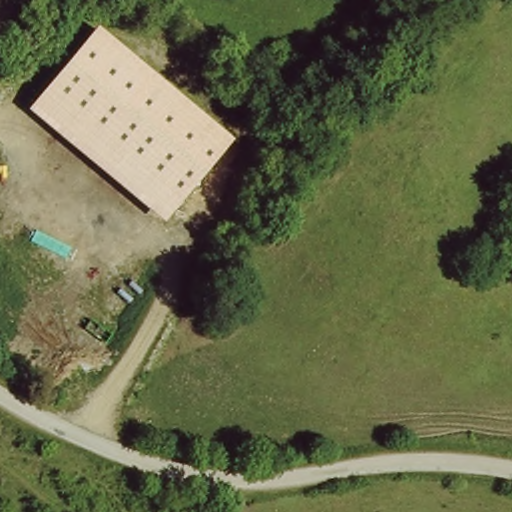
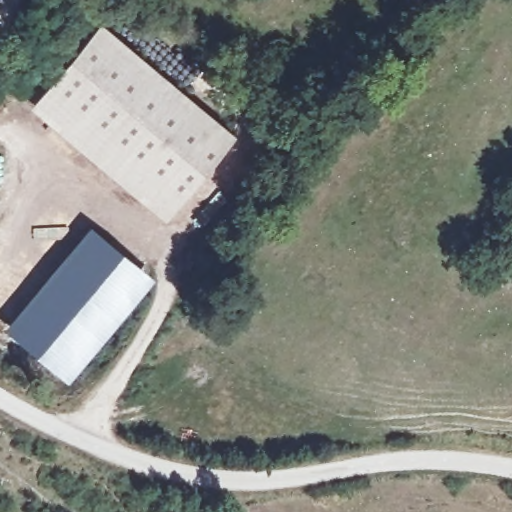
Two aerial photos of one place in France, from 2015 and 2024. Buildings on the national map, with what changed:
unchanged [(167,220),(33,109),(103,25),(237,138),(167,220)]
new [(5,329),(90,227),(154,280),(68,383),(5,329)]

